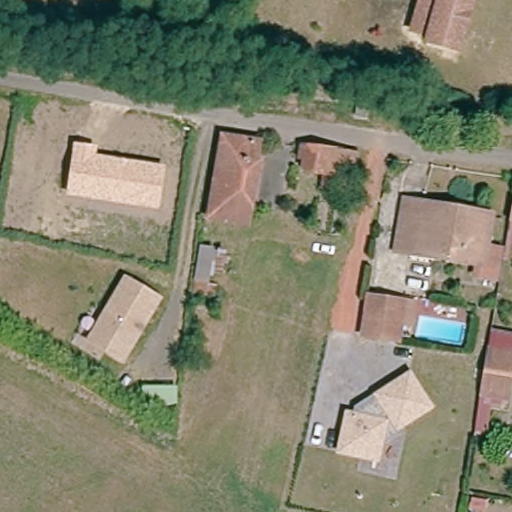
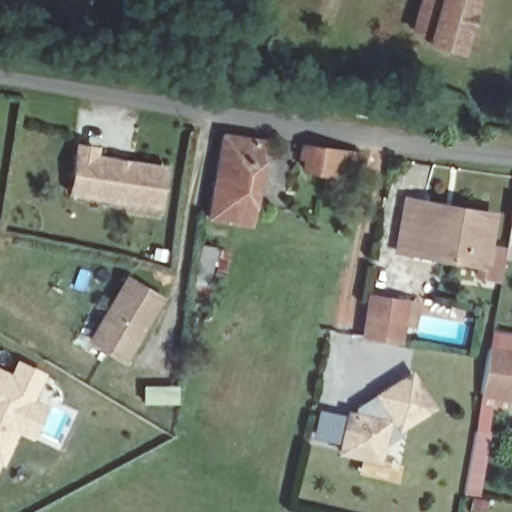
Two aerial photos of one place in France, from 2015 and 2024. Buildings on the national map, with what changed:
unchanged [(434,47),(436,39),(414,32),(423,0),(478,0),(463,55),(434,47)]
unchanged [(227,136),(264,142),(254,206),(251,227),(214,222),(217,201),(227,136)]
unchanged [(98,145),(96,154),(165,165),(160,208),(68,195),(75,143),(98,145)]
unchanged [(357,185),(324,179),(309,176),(310,164),(302,161),(305,151),(328,155),(361,161),(357,185)]
unchanged [(411,202),(456,209),(494,215),(490,244),(406,231),(409,212),(411,202)]
unchanged [(499,277),(479,273),(481,262),(403,251),(406,231),(490,244),(504,246),(499,277)]
unchanged [(229,250),(224,278),(219,276),(217,297),(194,293),(200,247),(229,250)]
unchanged [(124,363),(86,341),(126,275),(164,298),(124,363)]
unchanged [(410,306),(418,307),(415,330),(405,327),(401,345),(366,340),(374,298),(410,306)]
unchanged [(490,360),(492,348),(512,352),(512,397),(484,393),(490,360)]
new [(15,359),(45,373),(33,398),(47,406),(31,440),(18,433),(1,466),(0,466),(0,368),(9,372),(15,359)]
unchanged [(436,407),(403,428),(404,432),(383,445),(379,464),(336,454),(345,411),(353,410),(354,404),(411,370),(436,407)]

